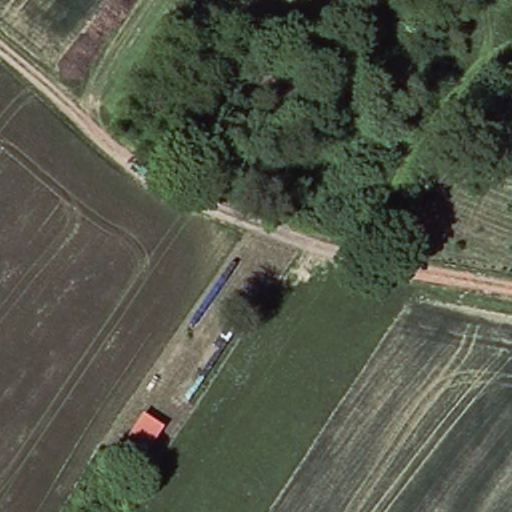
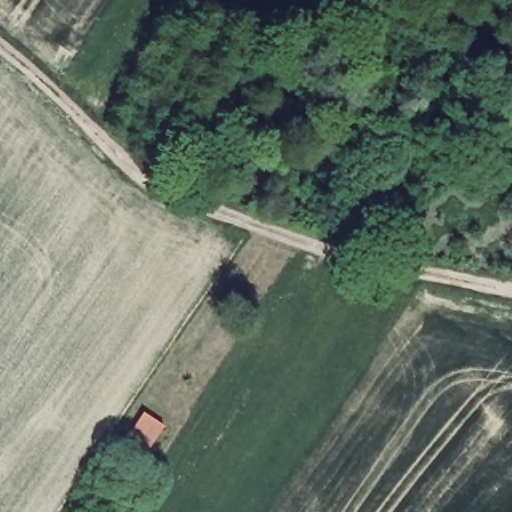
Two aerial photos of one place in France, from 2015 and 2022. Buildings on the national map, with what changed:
unchanged [(163,426),(148,449),(127,436),(142,411),(163,426)]

